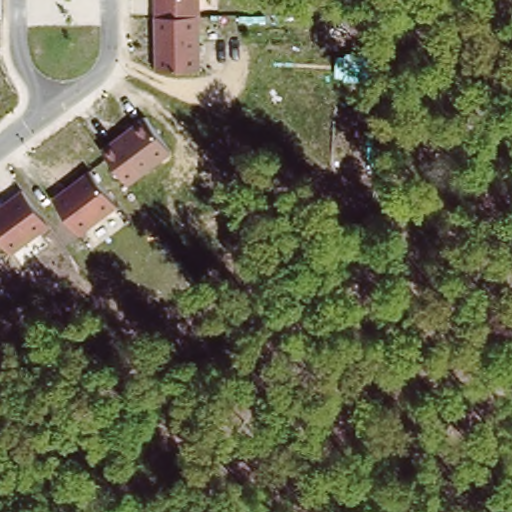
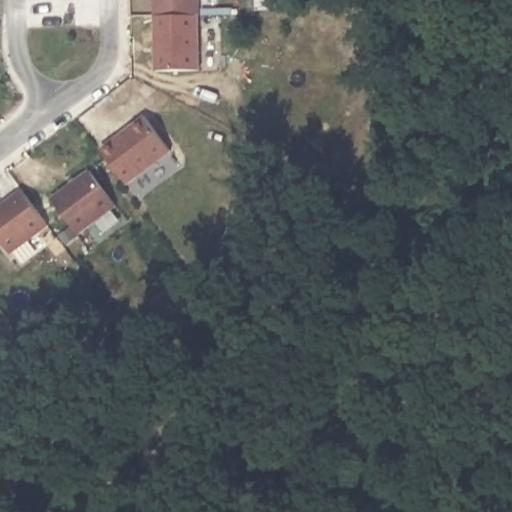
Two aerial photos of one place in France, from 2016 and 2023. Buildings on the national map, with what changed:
unchanged [(154,15),(154,0),(200,0),(200,15),(154,15)]
unchanged [(200,15),(202,76),(156,75),(154,15),(200,15)]
unchanged [(103,147),(145,115),(171,152),(128,184),(103,147)]
unchanged [(90,170),(117,207),(78,236),(52,199),(90,170)]
unchanged [(10,254),(0,240),(0,204),(22,188),(49,226),(10,254)]

